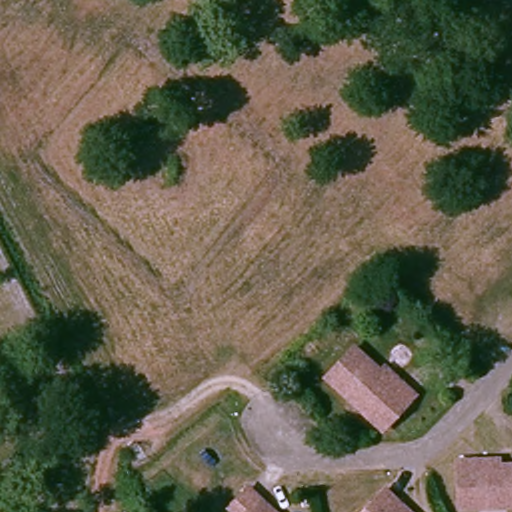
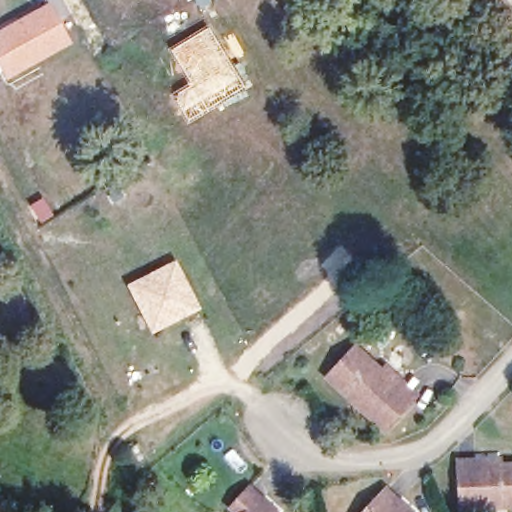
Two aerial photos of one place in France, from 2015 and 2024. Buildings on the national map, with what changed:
new [(0,29),(47,3),(70,42),(6,78),(0,66),(0,29)]
new [(208,25),(248,91),(188,126),(169,95),(191,81),(168,50),(208,25)]
new [(176,259),(201,309),(151,334),(125,284),(176,259)]
unchanged [(399,388),(406,382),(419,395),(388,427),(337,382),(332,377),(355,349),(365,358),(399,388)]
unchanged [(478,458),(477,465),(512,468),(512,507),(458,504),(462,457),(478,458)]
unchanged [(245,500),(267,480),(277,492),(272,498),(285,512),(255,512),(245,500)]
unchanged [(392,491),(404,503),(397,510),(400,512),(371,512),(392,491)]

